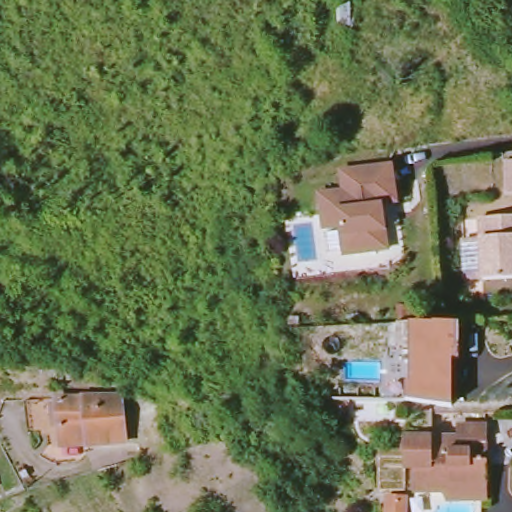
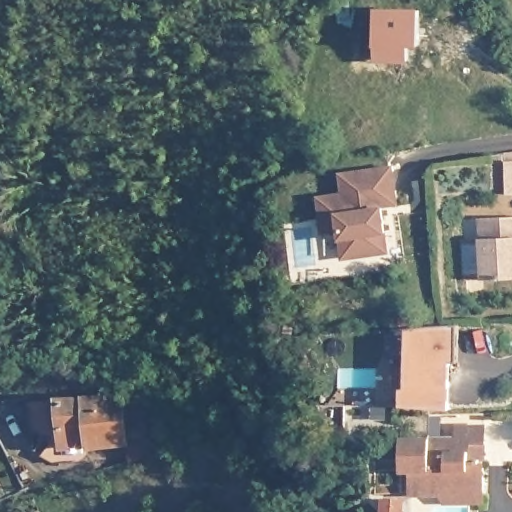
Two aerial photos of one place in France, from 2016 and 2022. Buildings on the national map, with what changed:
new [(402,62),(402,65),(369,66),(368,15),(412,14),(412,49),(412,62),(402,62)]
unchanged [(512,155),(512,196),(505,196),(503,157),(506,156),(512,155)]
unchanged [(374,231),(375,253),(342,255),(340,228),(321,230),(318,193),(342,189),(340,169),(392,162),(395,189),(397,203),(382,206),(384,229),(374,231)]
unchanged [(474,216),(512,215),(512,276),(478,277),(474,216)]
unchanged [(451,402),(405,401),(404,382),(409,382),(409,322),(458,322),(451,402)]
unchanged [(122,397),(127,441),(90,445),(84,446),(84,444),(61,448),(59,432),(30,434),(26,401),(122,397)]
unchanged [(487,456),(485,498),(445,499),(445,488),(412,488),(411,467),(402,467),(401,433),(434,431),(454,430),(454,421),(485,420),(487,456)]

